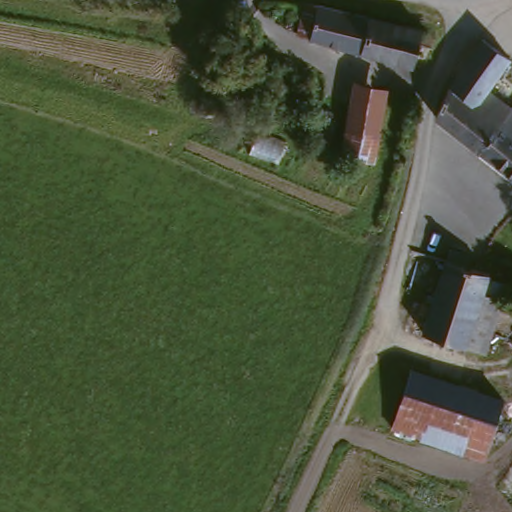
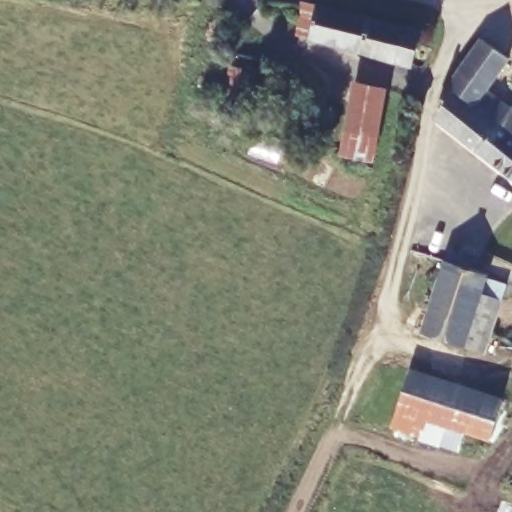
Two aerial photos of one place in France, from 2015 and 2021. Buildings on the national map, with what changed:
unchanged [(316,33),(304,29),(310,0),(319,0),(323,1),(430,26),(421,60),(316,33)]
unchanged [(442,118),(451,93),(488,40),(512,58),(512,64),(492,90),(512,106),(512,118),(485,152),(442,118)]
unchanged [(389,88),(376,155),(347,150),(361,80),(389,88)]
unchanged [(416,109),(410,105),(413,99),(417,101),(416,109)]
unchanged [(512,174),(485,152),(512,118),(512,174)]
unchanged [(427,333),(450,263),(491,275),(485,297),(470,346),(427,333)]
unchanged [(485,297),(505,303),(489,352),(470,346),(485,297)]
unchanged [(504,402),(486,456),(398,428),(416,373),(504,402)]

